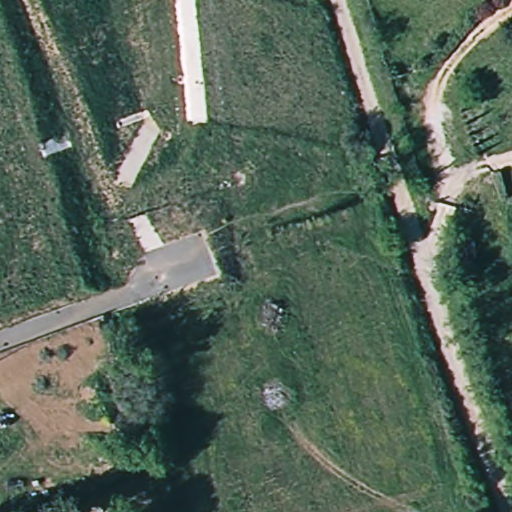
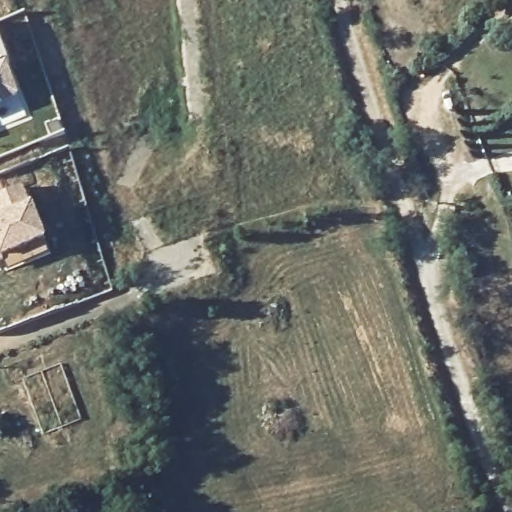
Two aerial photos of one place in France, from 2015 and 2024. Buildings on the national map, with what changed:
new [(0,103),(0,37),(10,63),(7,64),(20,97),(0,103)]
new [(20,193),(28,212),(30,212),(45,245),(2,263),(3,266),(0,268),(0,202),(20,193)]

